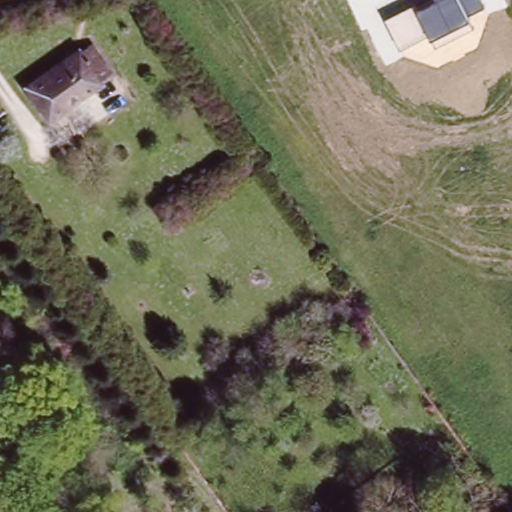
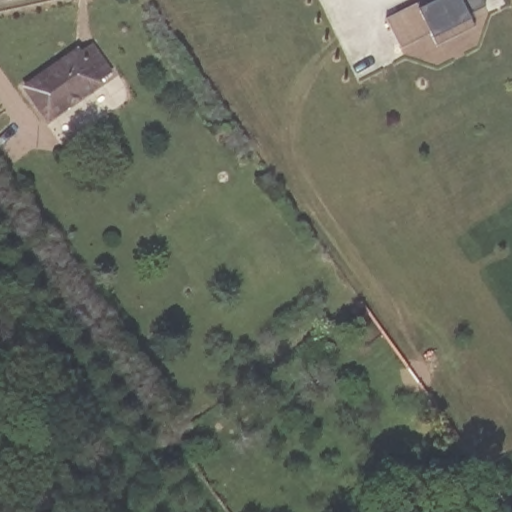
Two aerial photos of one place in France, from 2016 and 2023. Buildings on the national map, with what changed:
unchanged [(423,0),(481,0),(485,6),(470,15),(475,28),(438,47),(430,35),(402,50),(387,20),(423,0)]
unchanged [(80,48),(92,65),(103,81),(50,118),(49,116),(37,124),(19,97),(30,88),(29,86),(80,48)]

